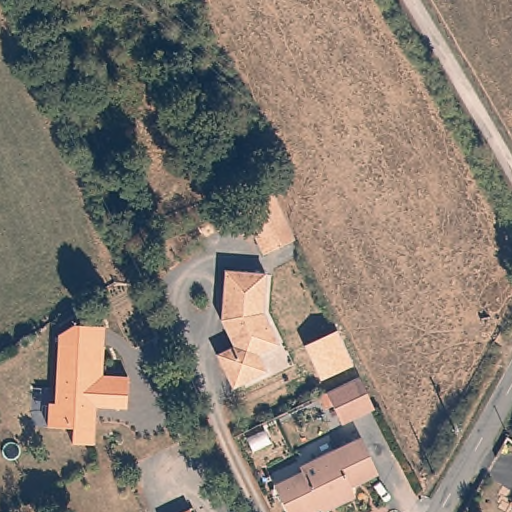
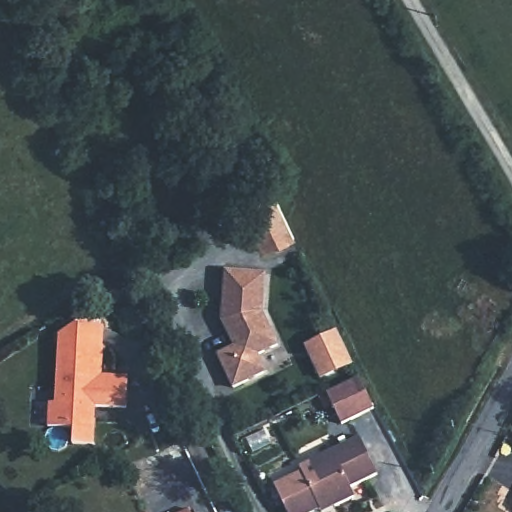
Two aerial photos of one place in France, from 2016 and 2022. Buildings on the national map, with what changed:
unchanged [(292,231),(291,231),(260,247),(245,215),(275,199),(292,231)]
unchanged [(223,355),(235,349),(221,323),(225,274),(265,276),(262,315),(278,347),(258,357),(266,374),(234,391),(225,372),(217,358),(223,355)]
unchanged [(354,366),(320,381),(303,345),(337,330),(354,366)]
unchanged [(100,344),(100,373),(126,374),(125,404),(95,404),(94,442),(72,441),(72,426),(48,426),(49,402),(55,402),(55,343),(100,344)]
unchanged [(356,377),(372,408),(340,425),(324,393),(356,377)]
unchanged [(355,432),(375,469),(348,482),(353,492),(333,503),(330,498),(304,512),(289,512),(273,481),(311,461),(309,456),(355,432)]

